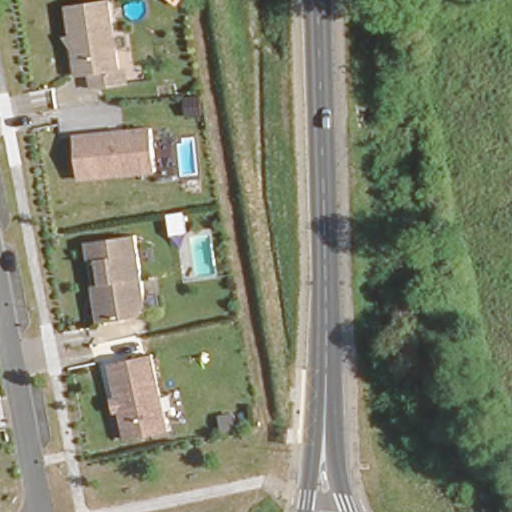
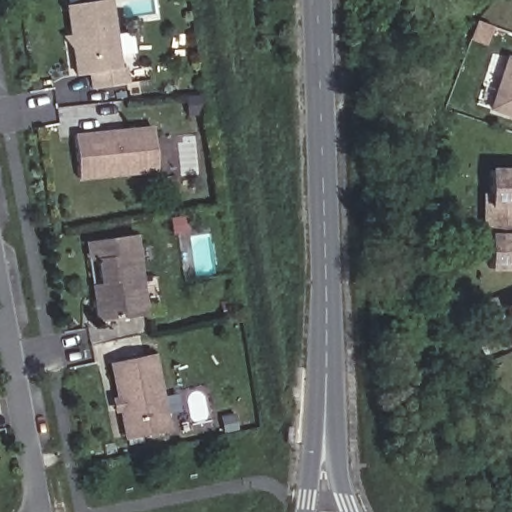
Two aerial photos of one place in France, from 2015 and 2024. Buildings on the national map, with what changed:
unchanged [(64,5),(100,0),(111,0),(121,70),(128,69),(129,86),(93,92),(89,76),(76,78),(64,5)]
new [(487,109),(504,54),(512,56),(512,118),(487,109)]
unchanged [(73,134),(155,126),(159,174),(78,182),(73,134)]
new [(512,168),(512,271),(488,271),(488,240),(482,240),(481,193),(488,193),(489,167),(512,168)]
unchanged [(84,241),(135,234),(149,317),(96,327),(84,241)]
new [(504,306),(512,303),(512,325),(504,306)]
new [(509,334),(512,334),(512,340),(509,334)]
unchanged [(109,364),(153,353),(170,433),(124,442),(109,364)]

